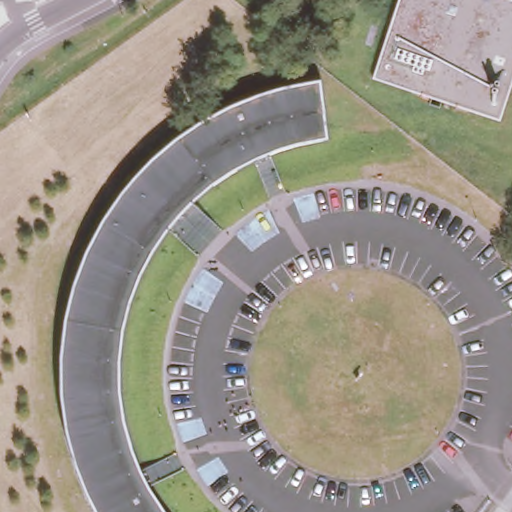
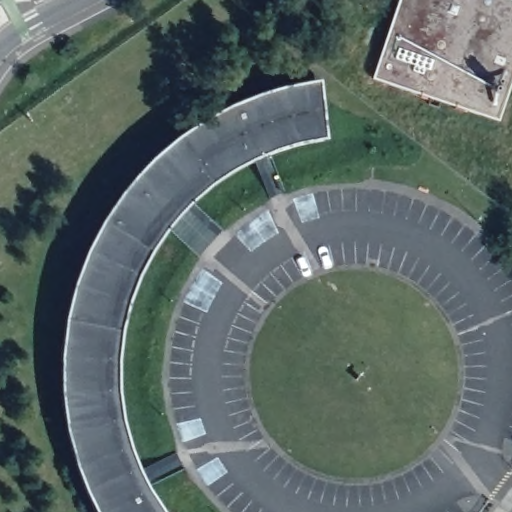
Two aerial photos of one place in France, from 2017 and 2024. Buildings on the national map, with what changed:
unchanged [(370,78),(396,0),(509,0),(512,1),(512,76),(497,121),(370,78)]
unchanged [(296,147),(264,158),(236,172),(212,188),(188,209),(169,231),(152,255),(139,280),(130,305),(123,333),(120,363),(120,392),(125,419),(130,443),(138,466),(147,487),(157,504),(163,512),(93,512),(89,504),(77,474),(69,448),(62,418),(60,394),(59,367),(61,335),(67,304),(74,282),(83,257),(94,235),(108,213),(124,190),(145,165),(169,144),(200,123),(227,108),(252,97),(289,87),(321,81),(329,141),(296,147)]

